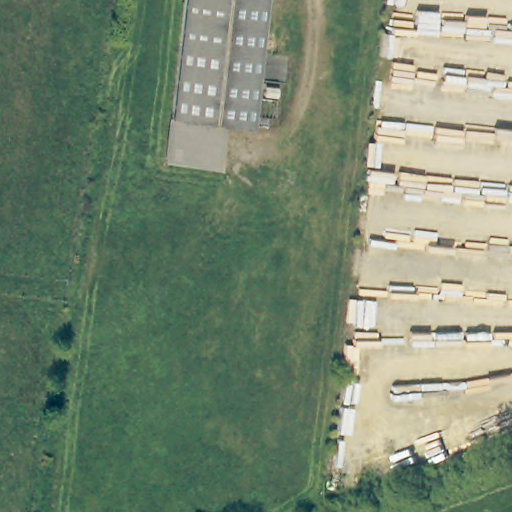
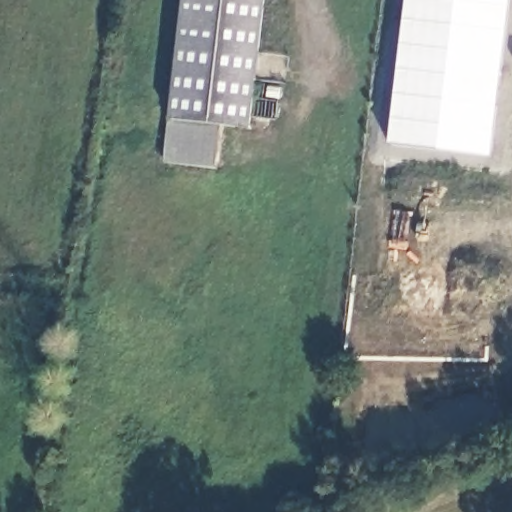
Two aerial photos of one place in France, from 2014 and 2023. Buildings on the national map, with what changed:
unchanged [(222,125),(170,120),(183,0),(262,0),(248,128),(222,125)]
new [(406,0),(510,0),(491,155),(389,144),(406,0)]
unchanged [(170,120),(222,125),(218,168),(165,162),(170,120)]

